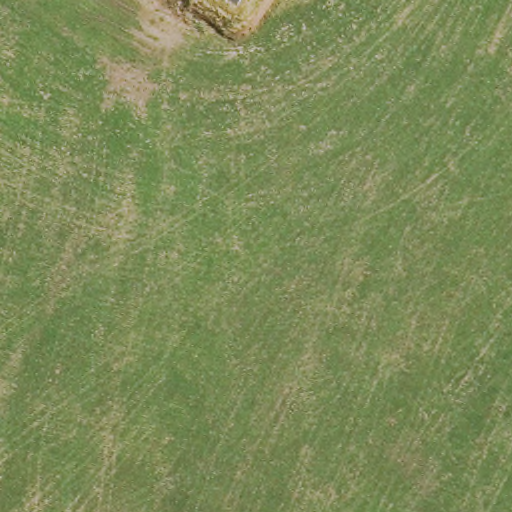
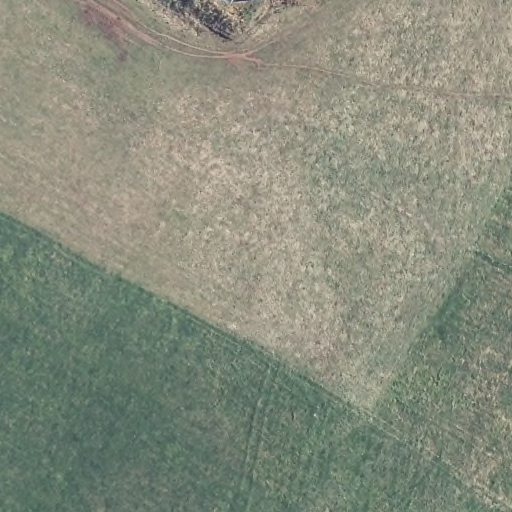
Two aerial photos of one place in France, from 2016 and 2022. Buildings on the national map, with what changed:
unchanged [(237,2),(234,0),(238,0),(237,2)]

